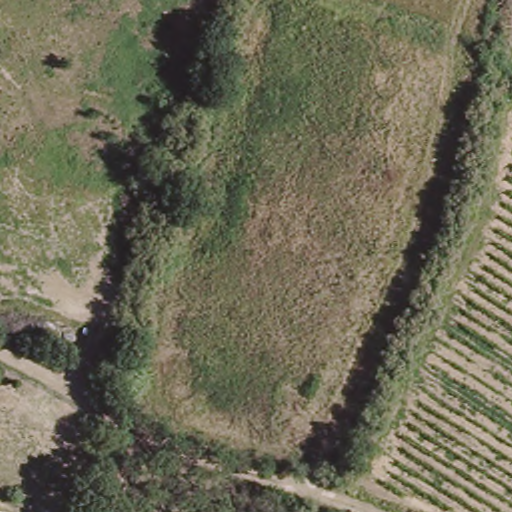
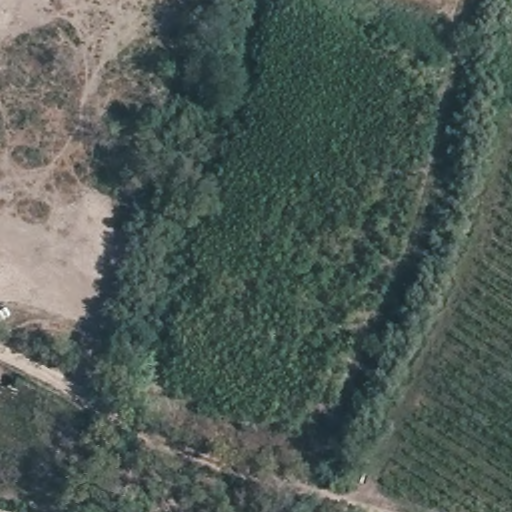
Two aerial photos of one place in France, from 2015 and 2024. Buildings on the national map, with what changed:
unchanged [(150,191),(134,187),(138,170),(154,175),(150,191)]

